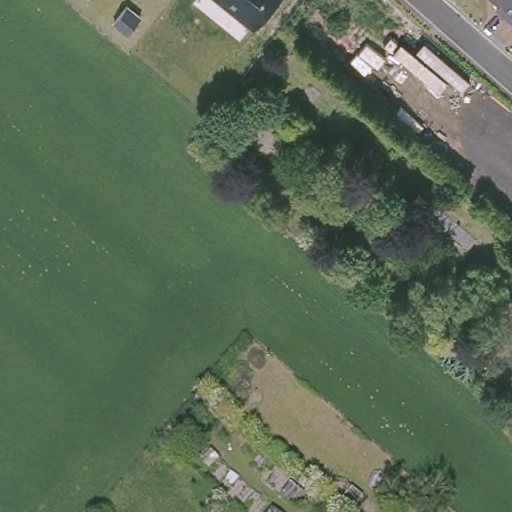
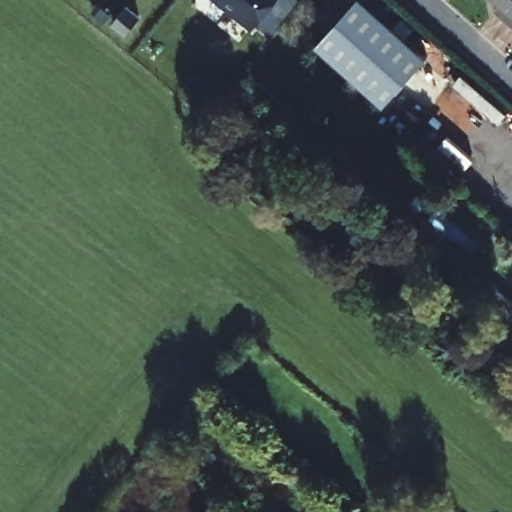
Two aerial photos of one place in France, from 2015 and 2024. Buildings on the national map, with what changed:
unchanged [(254,28),(219,0),(276,0),(254,28)]
new [(356,0),(368,0),(430,56),(386,105),(316,44),(356,0)]
unchanged [(512,29),(493,12),(497,5),(491,0),(512,0),(512,29)]
unchanged [(495,278),(512,293),(512,308),(487,287),(495,278)]

